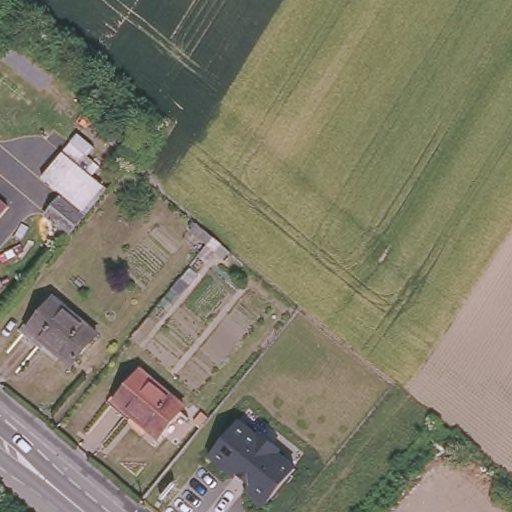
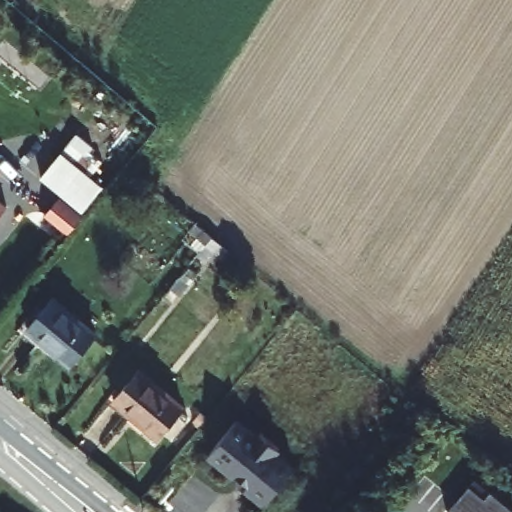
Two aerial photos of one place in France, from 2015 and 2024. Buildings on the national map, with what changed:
unchanged [(62,151),(102,188),(66,235),(42,214),(50,205),(32,190),(62,151)]
unchanged [(0,214),(0,202),(6,206),(0,214)]
unchanged [(207,259),(199,252),(190,244),(204,227),(213,235),(221,242),(207,259)]
unchanged [(97,333),(71,363),(44,342),(40,347),(18,327),(28,315),(34,319),(52,296),(97,333)]
unchanged [(121,393),(141,369),(184,405),(157,436),(132,414),(127,419),(105,400),(115,388),(121,393)]
unchanged [(262,502),(202,451),(230,416),(253,434),(259,427),(278,442),(272,450),(292,466),(262,502)]
new [(448,510),(470,484),(486,498),(491,491),(512,508),(512,512),(451,512),(448,510)]

